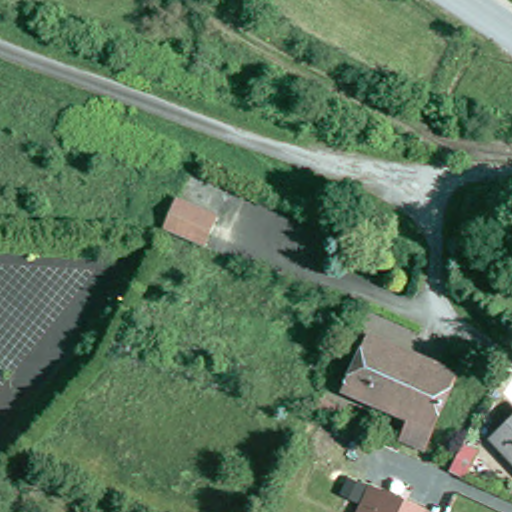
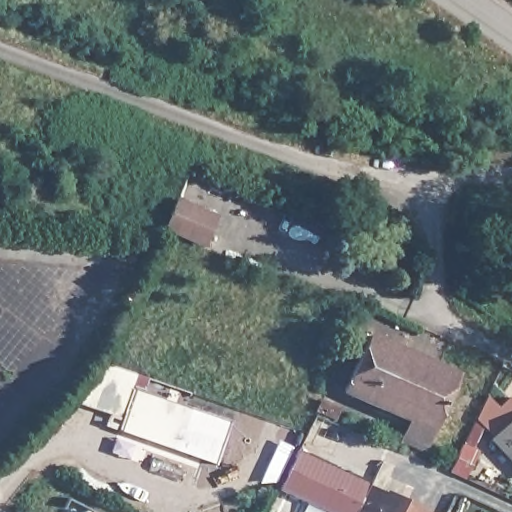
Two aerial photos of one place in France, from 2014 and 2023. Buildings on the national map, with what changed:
unchanged [(177,206),(218,219),(210,247),(169,235),(177,206)]
unchanged [(345,391),(370,337),(457,377),(426,450),(405,440),(413,421),(345,391)]
new [(64,396),(98,359),(147,375),(142,390),(230,420),(216,462),(117,428),(105,424),(109,412),(64,396)]
unchanged [(488,442),(512,420),(512,468),(488,442)]
new [(333,512),(281,488),(300,446),(369,482),(356,512),(333,512)]
unchanged [(356,512),(369,482),(434,512),(356,512)]

